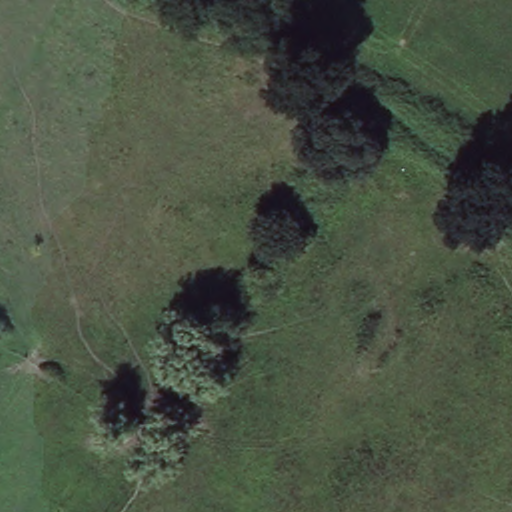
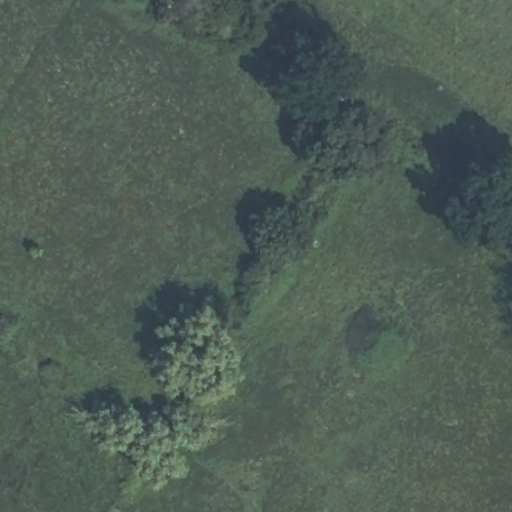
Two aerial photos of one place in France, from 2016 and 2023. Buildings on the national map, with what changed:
[]

